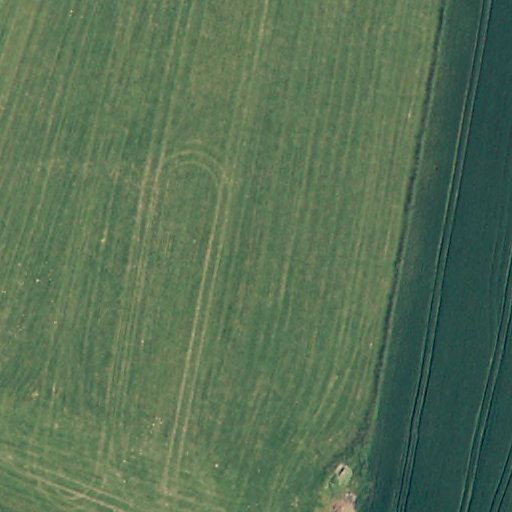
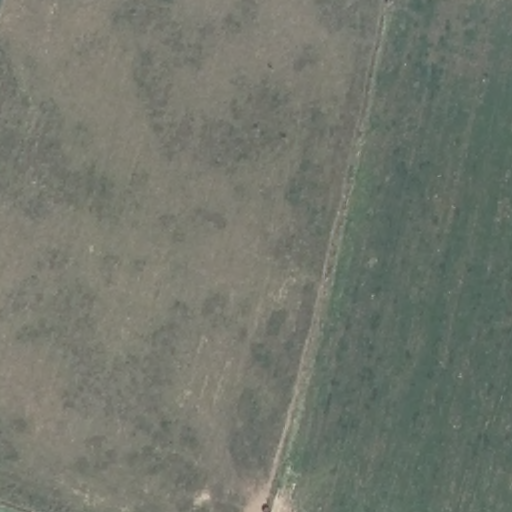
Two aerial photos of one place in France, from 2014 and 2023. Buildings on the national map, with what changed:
[]

